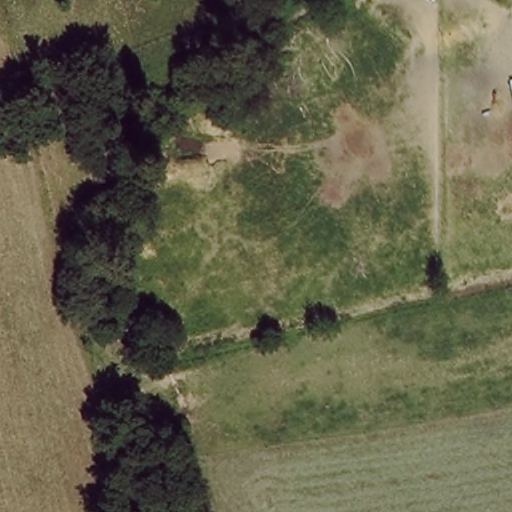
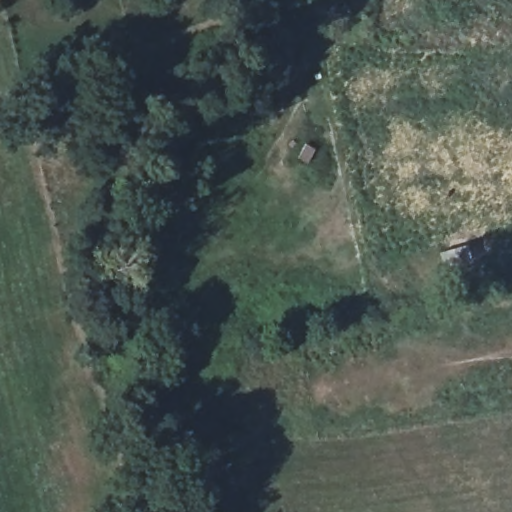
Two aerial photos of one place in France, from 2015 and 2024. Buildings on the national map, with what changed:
[]

